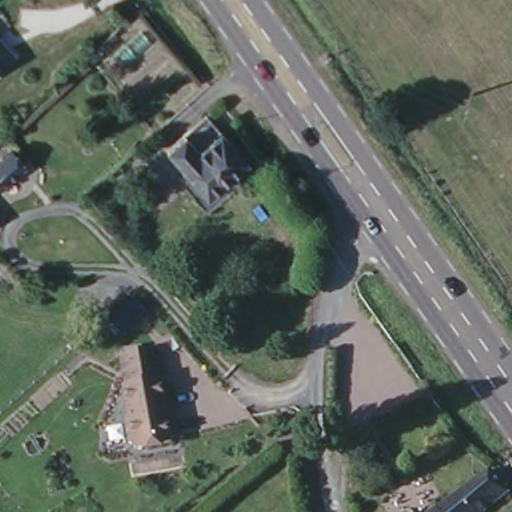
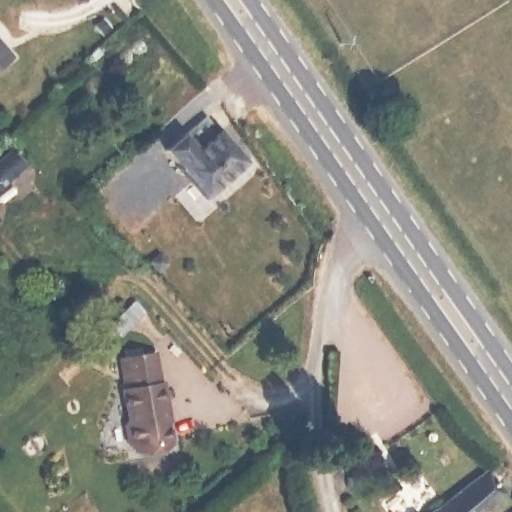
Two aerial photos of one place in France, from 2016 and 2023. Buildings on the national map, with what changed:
unchanged [(3,57),(0,59),(0,54),(3,57)]
unchanged [(249,160),(209,195),(168,150),(209,116),(249,160)]
unchanged [(18,171),(0,186),(0,159),(4,155),(18,171)]
unchanged [(127,446),(114,356),(161,350),(176,441),(127,446)]
unchanged [(499,465),(512,480),(512,485),(481,512),(438,512),(485,476),(499,465)]

